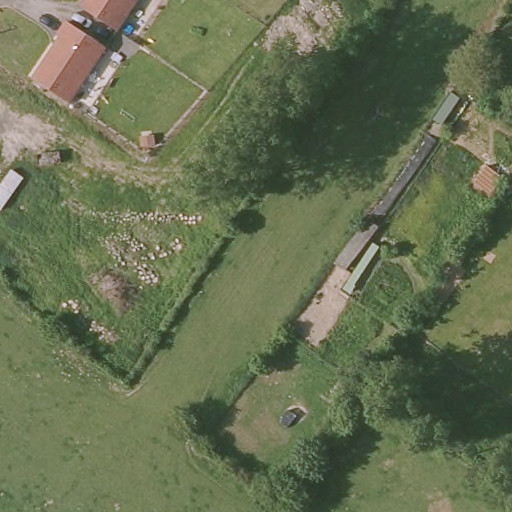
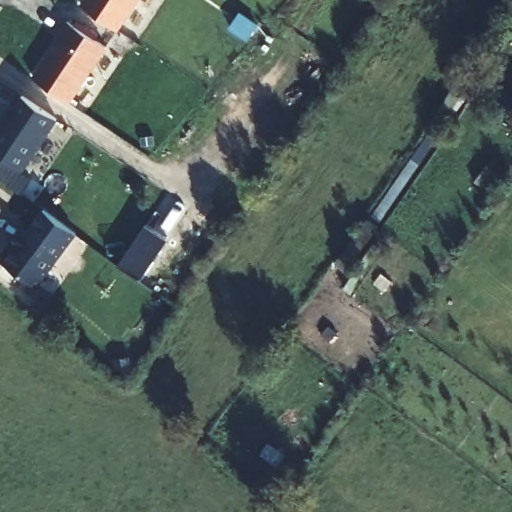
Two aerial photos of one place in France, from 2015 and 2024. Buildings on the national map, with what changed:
unchanged [(140,0),(122,30),(84,4),(86,0),(140,0)]
unchanged [(63,36),(60,35),(70,19),(109,46),(72,102),(36,76),(63,36)]
new [(59,120),(25,174),(0,159),(0,126),(20,96),(59,120)]
new [(0,262),(40,210),(77,235),(37,290),(0,262)]
new [(120,265),(147,224),(169,238),(142,279),(120,265)]

